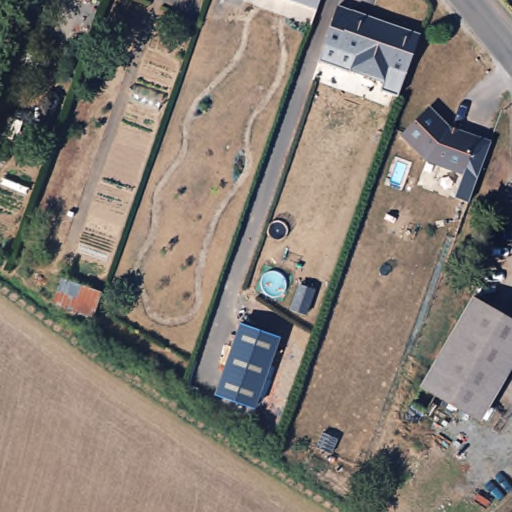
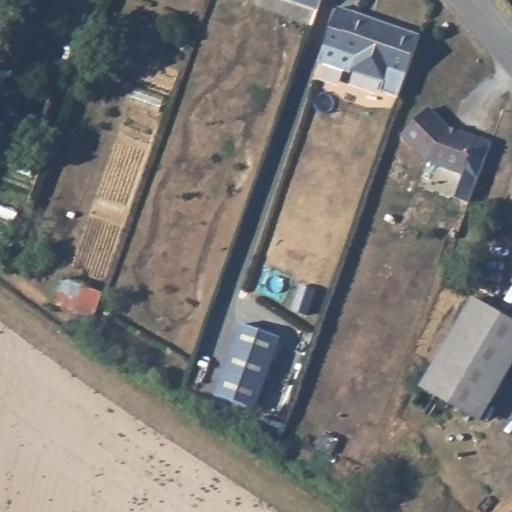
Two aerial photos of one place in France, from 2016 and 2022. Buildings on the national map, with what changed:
unchanged [(3,25),(12,0),(39,0),(27,33),(3,25)]
unchanged [(304,0),(320,0),(318,5),(304,0)]
unchanged [(407,75),(392,69),(387,81),(352,69),(356,56),(326,46),(340,6),(422,34),(407,75)]
unchanged [(400,140),(427,114),(447,135),(474,146),(460,181),(425,167),(400,140)]
unchanged [(102,293),(95,316),(55,303),(61,279),(102,293)]
unchanged [(477,301),(512,323),(512,369),(476,424),(435,398),(422,416),(408,407),(477,301)]
unchanged [(284,338),(257,411),(217,395),(242,323),(284,338)]

